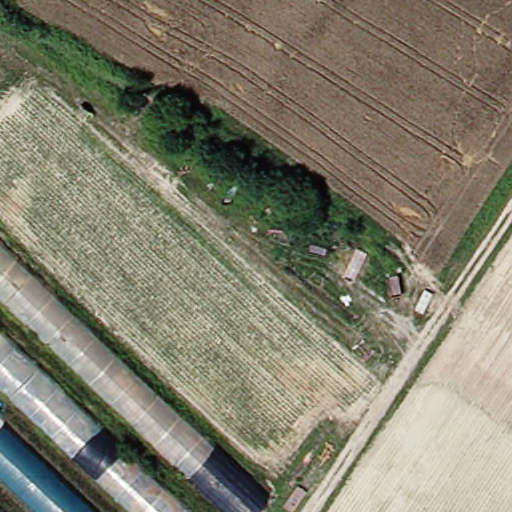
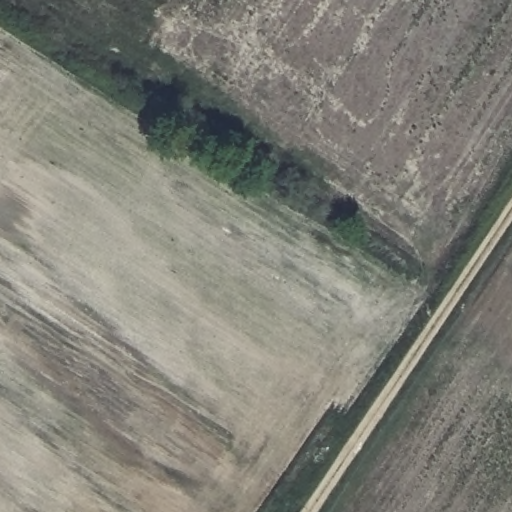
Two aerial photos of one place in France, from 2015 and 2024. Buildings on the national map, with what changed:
demolished [(0,291),(0,234),(276,493),(258,512),(234,512),(0,291)]
demolished [(0,381),(0,322),(198,512),(138,512),(0,381)]
demolished [(0,469),(0,414),(104,512),(44,512),(0,469)]
demolished [(10,512),(0,512),(0,503),(10,512)]

